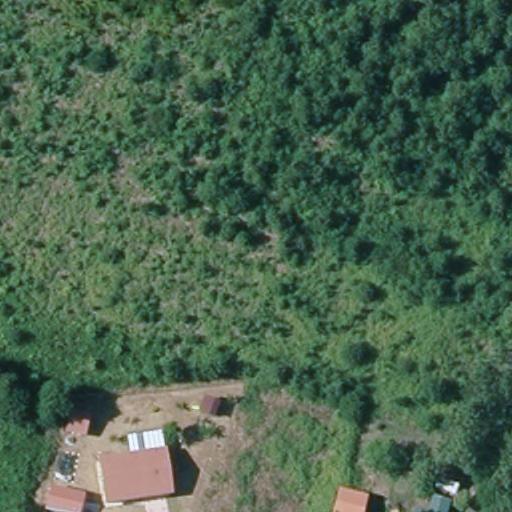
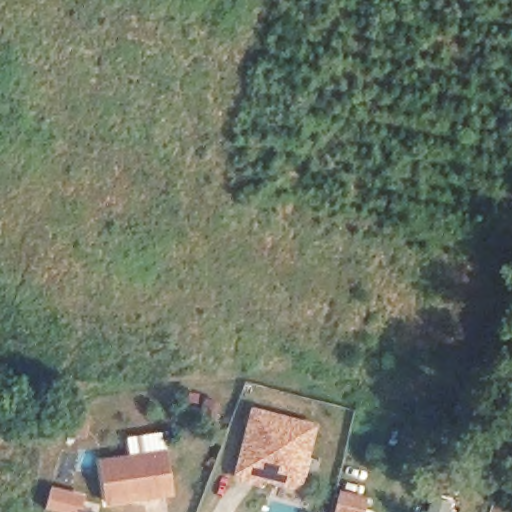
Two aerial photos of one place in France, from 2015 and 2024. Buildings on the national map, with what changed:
new [(319,424),(306,479),(295,490),(263,483),(262,489),(232,481),(252,407),(319,424)]
unchanged [(89,416),(84,434),(69,431),(75,412),(89,416)]
unchanged [(103,459),(167,450),(173,492),(109,500),(103,459)]
unchanged [(87,493),(84,512),(56,512),(45,509),(51,484),(87,493)]
unchanged [(450,512),(428,512),(432,498),(452,504),(450,512)]
unchanged [(369,512),(338,512),(341,501),(370,508),(369,512)]

